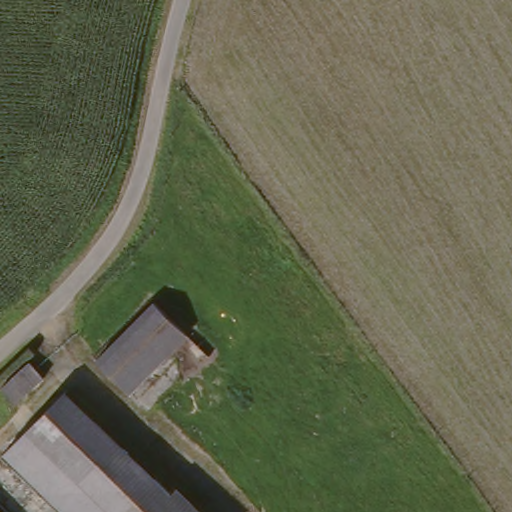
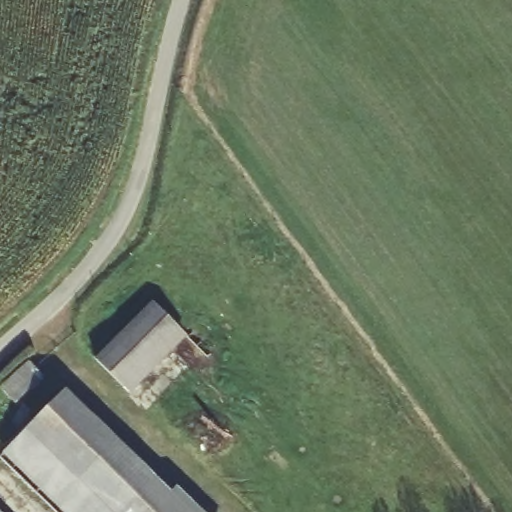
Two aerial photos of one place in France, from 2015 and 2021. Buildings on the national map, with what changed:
unchanged [(102,352),(147,307),(178,337),(132,383),(122,393),(92,362),(102,352)]
unchanged [(40,378),(13,406),(0,393),(0,386),(24,362),(40,378)]
unchanged [(0,447),(0,442),(57,385),(174,500),(187,512),(67,512),(0,447)]

